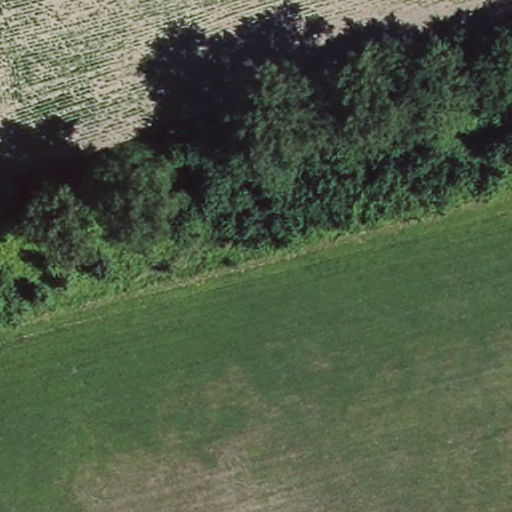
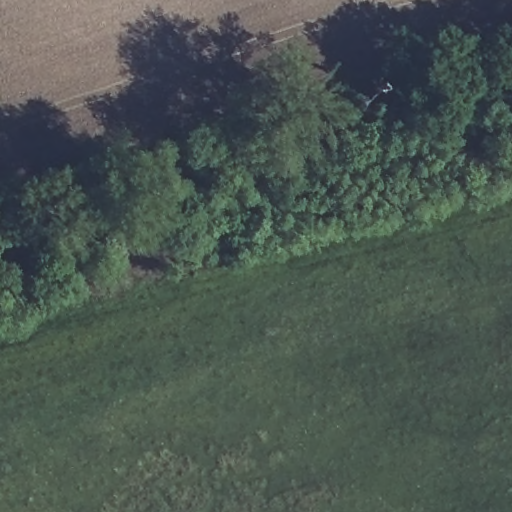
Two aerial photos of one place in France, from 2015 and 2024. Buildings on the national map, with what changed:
[]

